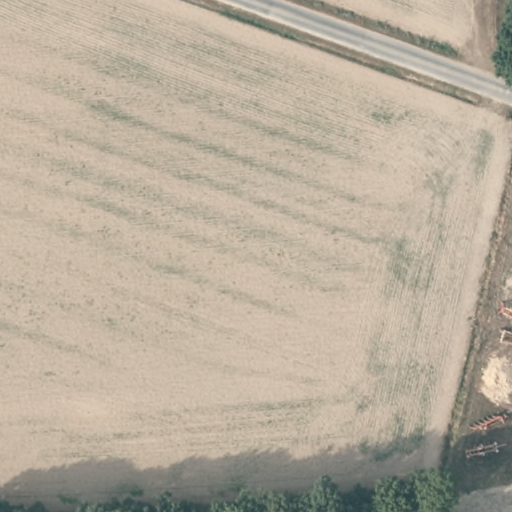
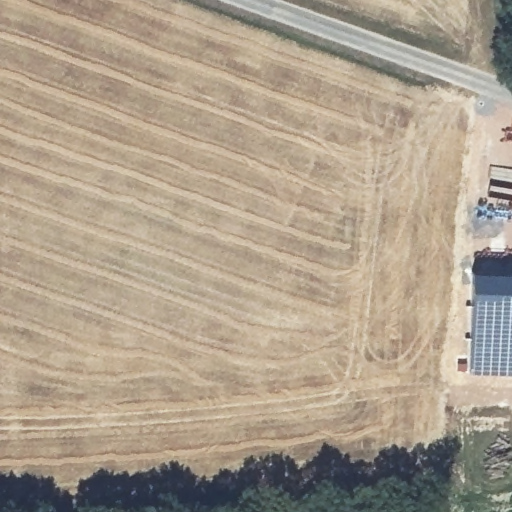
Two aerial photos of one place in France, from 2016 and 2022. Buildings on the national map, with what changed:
new [(468,372),(471,270),(512,272),(512,373),(468,372)]
demolished [(493,335),(502,291),(512,293),(512,331),(510,340),(493,335)]
demolished [(494,430),(463,425),(468,368),(486,370),(496,370),(494,430)]

